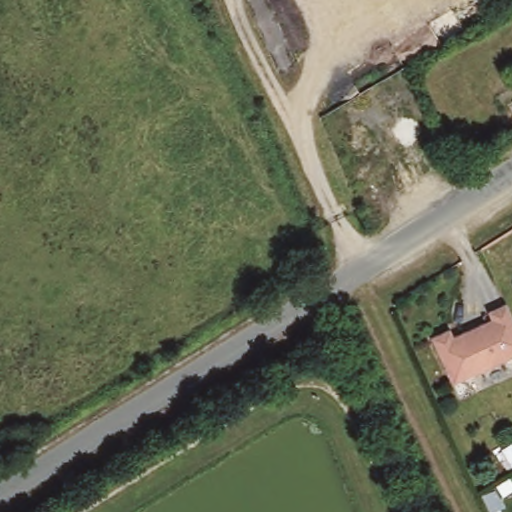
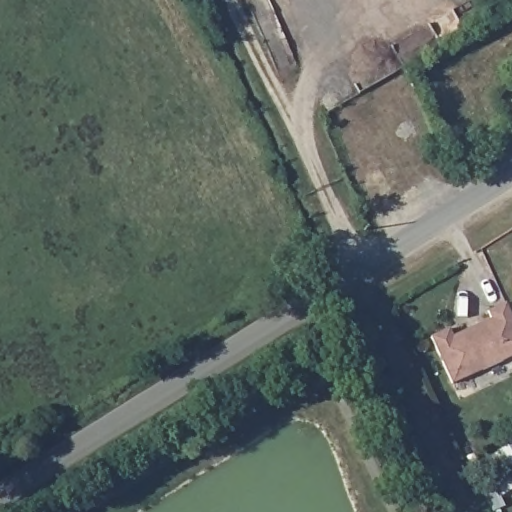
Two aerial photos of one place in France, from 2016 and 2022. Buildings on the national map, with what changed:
unchanged [(456,379),(434,333),(452,325),(455,332),(494,313),(490,306),(508,297),(512,306),(512,352),(456,379)]

